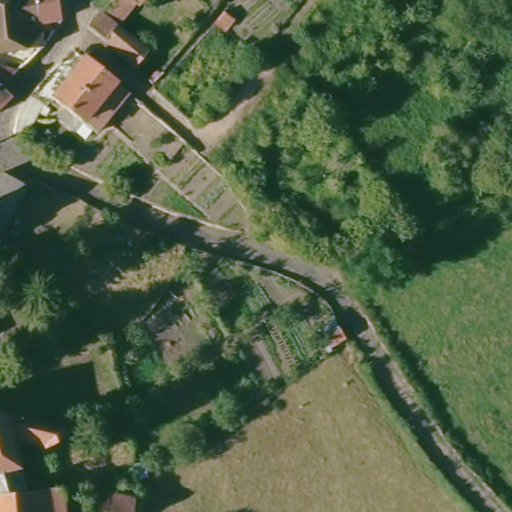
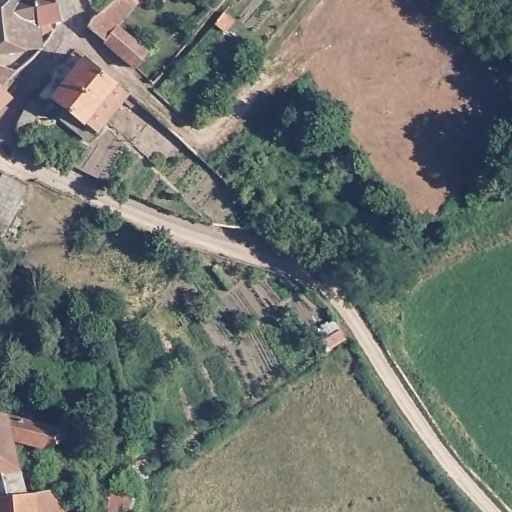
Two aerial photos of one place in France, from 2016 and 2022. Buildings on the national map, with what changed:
unchanged [(0,56),(0,0),(63,0),(68,16),(52,20),(56,41),(53,46),(0,56)]
unchanged [(137,55),(124,72),(115,65),(118,57),(89,32),(95,22),(107,17),(125,2),(127,0),(148,0),(138,11),(118,36),(137,55)]
unchanged [(122,95),(98,126),(62,105),(60,104),(89,67),(122,95)]
unchanged [(0,97),(0,69),(21,76),(0,97)]
unchanged [(8,106),(0,116),(0,98),(8,106)]
unchanged [(5,237),(0,235),(0,183),(2,179),(27,189),(5,237)]
unchanged [(51,416),(61,418),(66,433),(71,448),(46,456),(15,446),(29,490),(30,495),(0,494),(0,408),(51,416)]
unchanged [(71,512),(0,512),(0,494),(30,495),(71,495),(71,512)]
unchanged [(140,512),(88,512),(88,506),(139,507),(140,512)]

